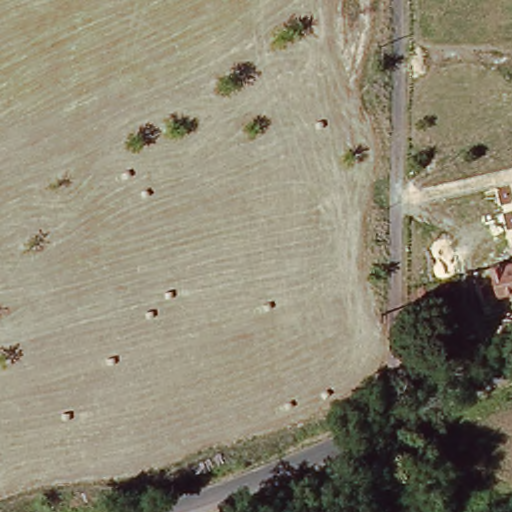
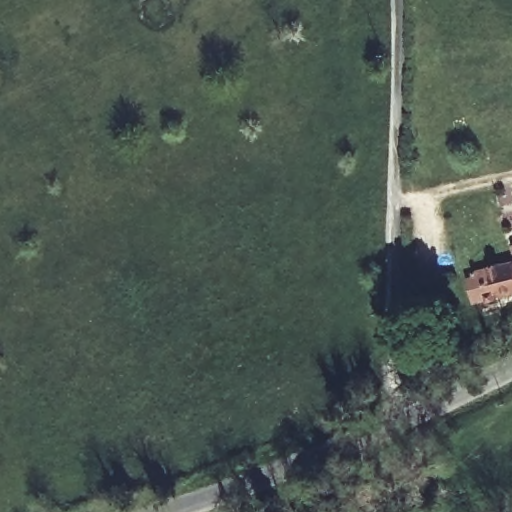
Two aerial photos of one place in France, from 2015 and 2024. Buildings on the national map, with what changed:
unchanged [(477,272),(512,264),(512,293),(484,300),(477,272)]

